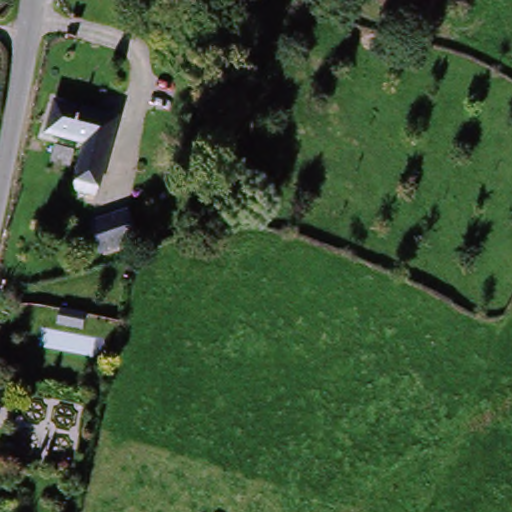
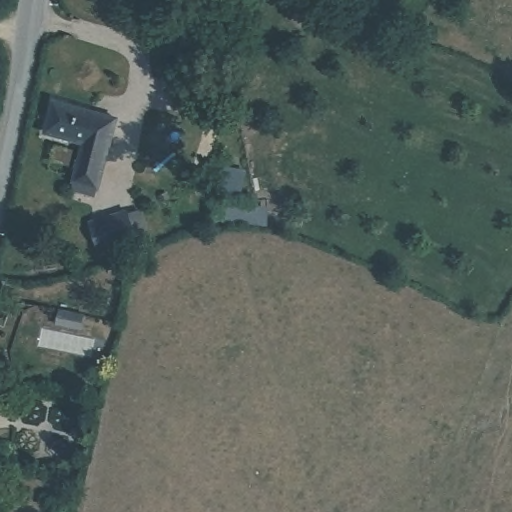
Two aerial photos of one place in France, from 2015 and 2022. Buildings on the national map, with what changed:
unchanged [(50,102),(113,120),(92,197),(69,192),(81,146),(41,132),(50,102)]
unchanged [(124,208),(136,240),(96,254),(88,222),(124,208)]

